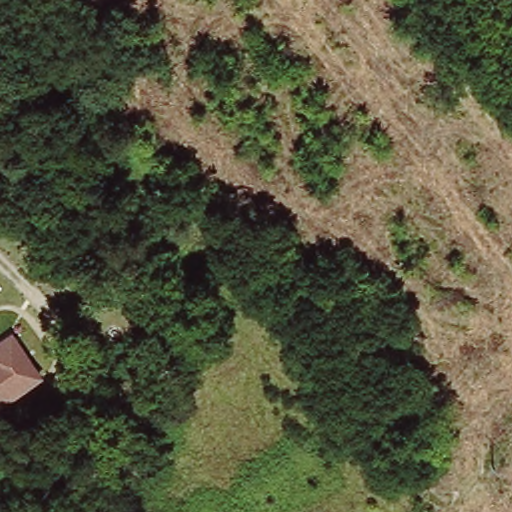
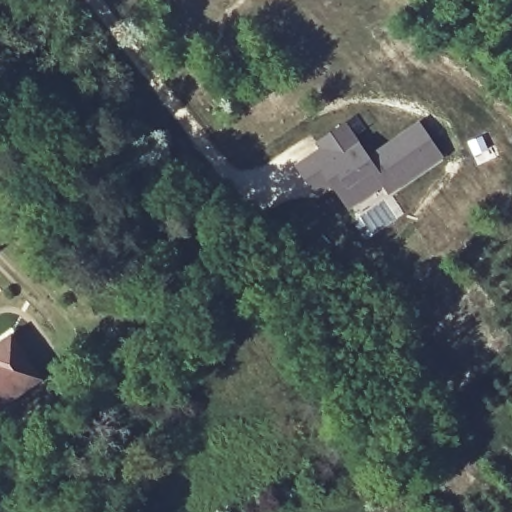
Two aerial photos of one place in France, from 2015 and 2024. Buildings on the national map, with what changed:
new [(317,147),(314,142),(345,120),(368,154),(418,120),(445,159),(389,197),(382,187),(347,211),(331,189),(317,198),(292,165),(317,147)]
unchanged [(38,379),(0,403),(0,349),(17,339),(38,379)]

